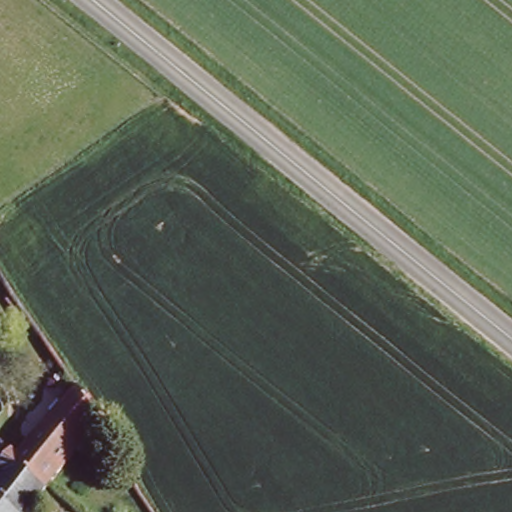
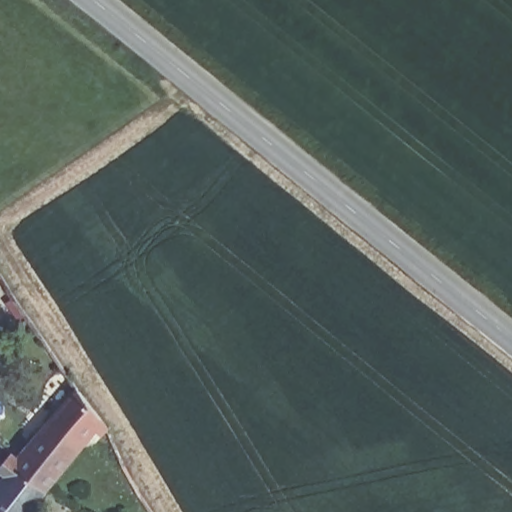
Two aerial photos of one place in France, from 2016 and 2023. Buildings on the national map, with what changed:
unchanged [(77,384),(108,427),(101,437),(95,432),(50,484),(18,455),(77,384)]
unchanged [(0,471),(0,461),(10,448),(18,455),(50,484),(28,512),(0,512),(0,477),(3,473),(0,471)]

